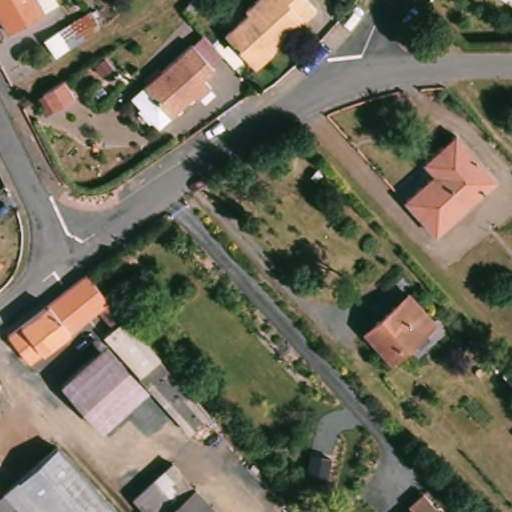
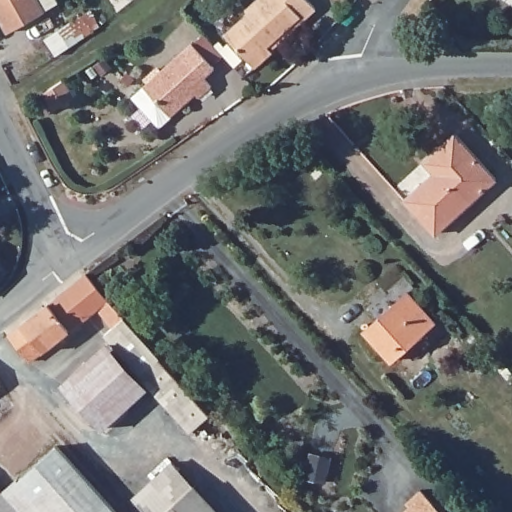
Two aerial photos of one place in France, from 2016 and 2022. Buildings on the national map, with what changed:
unchanged [(0,19),(0,0),(35,0),(45,17),(10,37),(0,19)]
unchanged [(256,69),(227,38),(250,16),(246,10),(258,0),(307,0),(317,12),(305,24),(275,52),(256,69)]
unchanged [(494,0),(510,0),(504,8),(494,0)]
unchanged [(146,87),(185,55),(196,46),(217,71),(205,80),(211,87),(201,97),(196,92),(169,115),(157,124),(149,114),(135,96),(138,94),(146,87)]
unchanged [(435,178),(425,167),(455,138),(497,184),(436,239),(405,205),(435,178)]
unchanged [(0,274),(0,263),(5,268),(0,274)]
unchanged [(91,279),(130,324),(119,332),(103,313),(76,335),(75,333),(35,366),(14,340),(91,279)]
unchanged [(435,327),(392,366),(365,336),(409,297),(435,327)]
unchanged [(119,332),(130,324),(165,364),(215,419),(196,437),(145,381),(147,379),(115,346),(110,340),(119,332)]
unchanged [(112,348),(152,393),(108,434),(67,389),(112,348)]
unchanged [(0,392),(0,390),(1,391),(0,392)]
unchanged [(58,450),(114,512),(0,512),(0,499),(2,496),(58,450)]
unchanged [(134,504),(174,467),(195,491),(173,512),(140,512),(134,505),(134,504)]
unchanged [(447,512),(404,512),(413,504),(410,500),(424,486),(447,512)]
unchanged [(173,512),(195,491),(215,512),(173,512)]
unchanged [(0,499),(0,494),(2,496),(0,499)]

